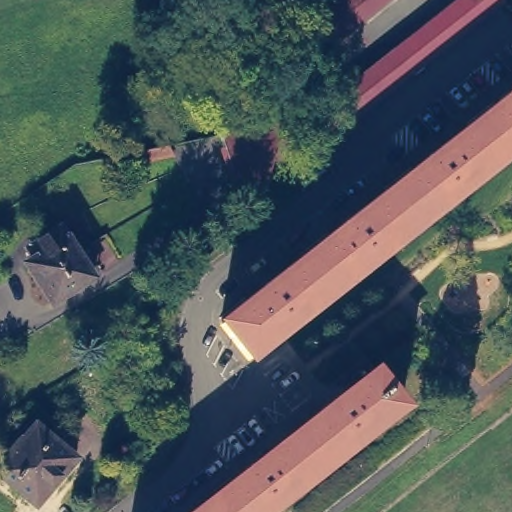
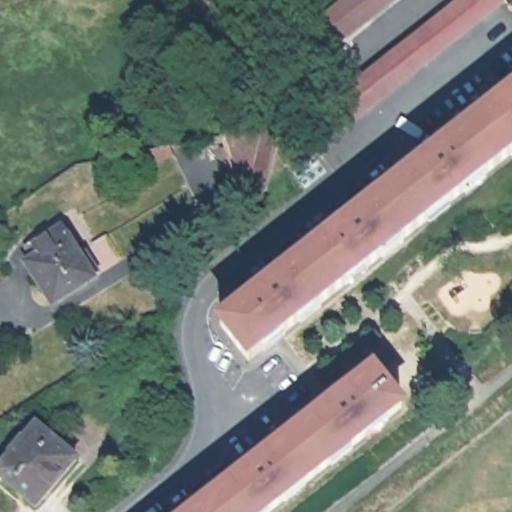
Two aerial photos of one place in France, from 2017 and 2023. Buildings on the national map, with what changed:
unchanged [(319,142),(302,120),(314,110),(453,0),(501,0),(320,143),(319,142)]
unchanged [(332,41),(315,18),(337,0),(385,0),(332,41)]
unchanged [(227,326),(512,102),(512,156),(295,327),(286,335),(254,360),(227,326)]
unchanged [(266,187),(250,204),(247,197),(237,183),(220,131),(282,120),(266,187)]
unchanged [(169,147),(174,155),(129,164),(127,155),(169,147)]
unchanged [(35,257),(28,246),(55,229),(73,257),(81,251),(91,267),(84,273),(87,279),(47,305),(23,265),(35,257)]
unchanged [(268,512),(199,512),(373,375),(400,409),(268,512)]
unchanged [(72,460),(31,508),(0,481),(0,462),(7,454),(6,453),(17,441),(17,442),(32,426),(72,460)]

